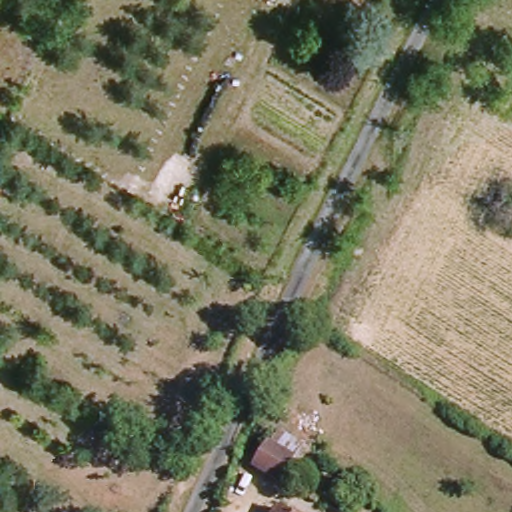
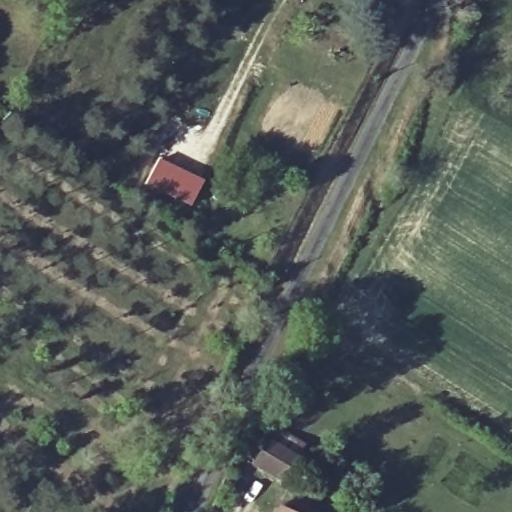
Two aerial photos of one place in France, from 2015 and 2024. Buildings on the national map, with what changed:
new [(201,184),(189,207),(147,186),(160,162),(201,184)]
unchanged [(257,466),(274,440),(300,457),(284,483),(257,466)]
unchanged [(292,512),(278,512),(281,505),(292,512)]

